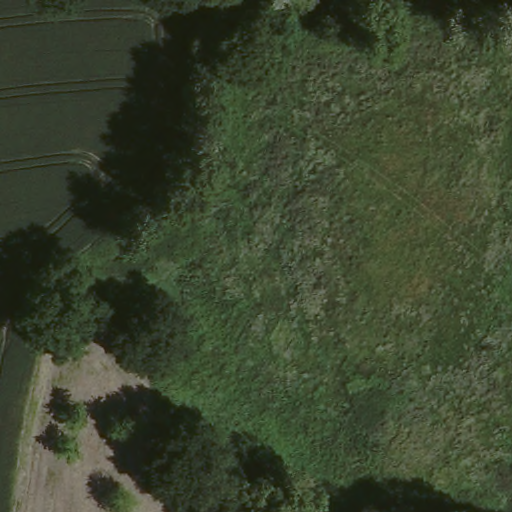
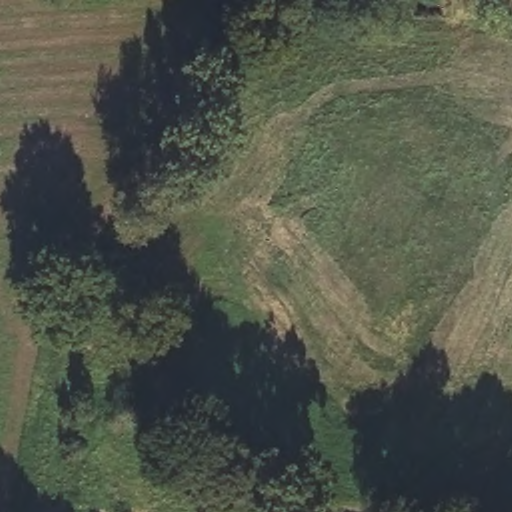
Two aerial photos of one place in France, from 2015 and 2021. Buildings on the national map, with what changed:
[]

